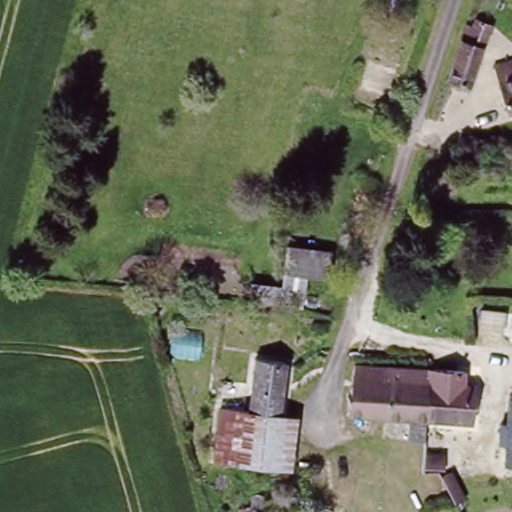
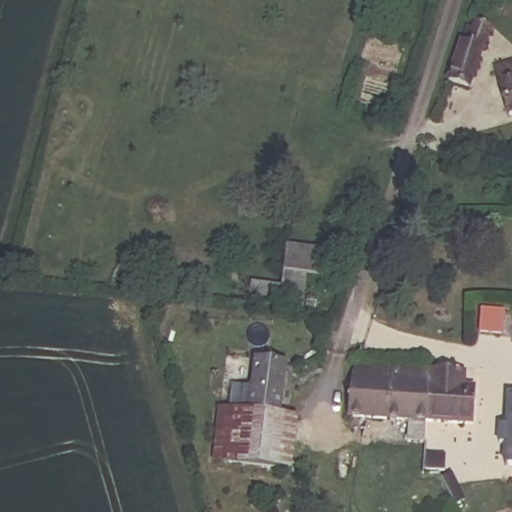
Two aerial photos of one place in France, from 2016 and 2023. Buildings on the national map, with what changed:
unchanged [(495,23),(492,32),(489,31),(470,88),(449,81),(471,15),(495,23)]
unchanged [(512,59),(512,115),(509,115),(495,64),(512,59)]
unchanged [(282,286),(283,272),(284,242),(332,244),(332,273),(305,272),(304,286),(282,286)]
unchanged [(427,368),(424,415),(422,439),(406,437),(408,417),(347,410),(354,360),(427,368)]
unchanged [(289,367),(280,419),(251,414),(260,362),(289,367)]
unchanged [(462,368),(461,382),(472,383),(469,416),(458,415),(457,419),(424,415),(427,368),(427,364),(462,368)]
unchanged [(512,393),(512,462),(504,461),(511,393),(512,393)]
unchanged [(280,419),(298,423),(289,472),(217,458),(226,409),(251,414),(280,419)]

